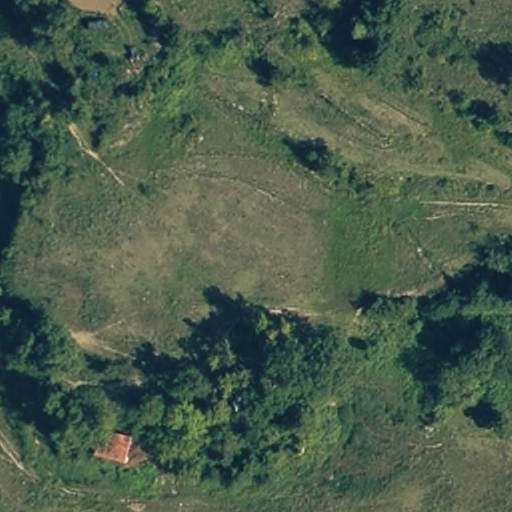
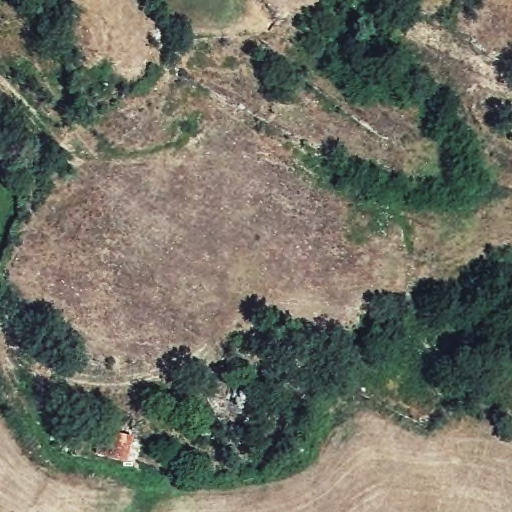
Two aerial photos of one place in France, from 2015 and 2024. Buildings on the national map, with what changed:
unchanged [(100,433),(131,441),(125,461),(88,451),(100,433)]

